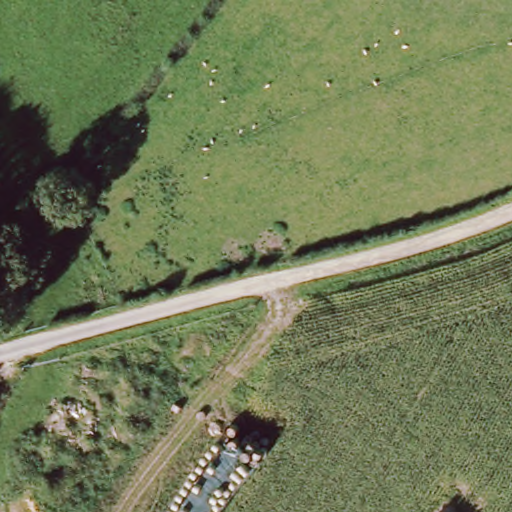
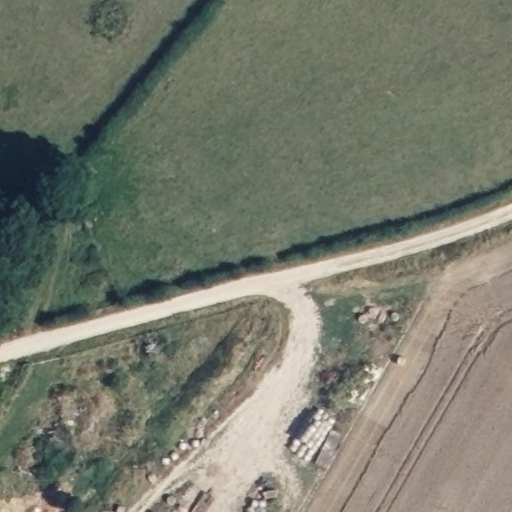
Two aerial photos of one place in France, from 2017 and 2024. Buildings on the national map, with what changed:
unchanged [(0,251),(0,223),(14,235),(0,251)]

